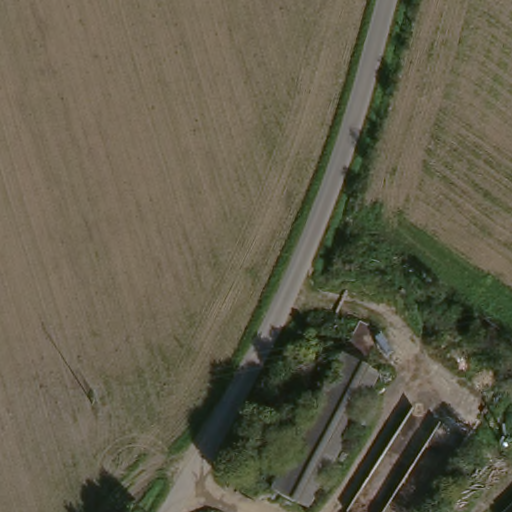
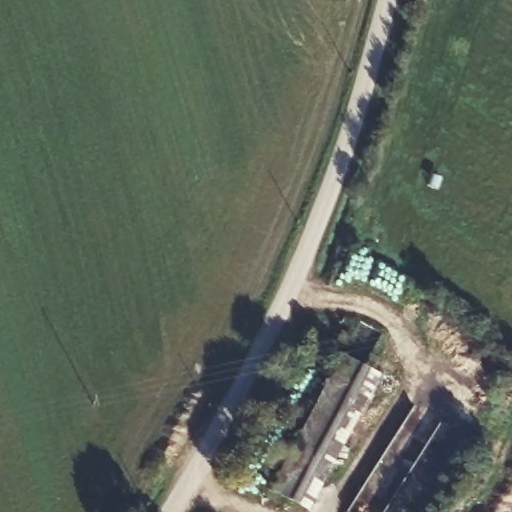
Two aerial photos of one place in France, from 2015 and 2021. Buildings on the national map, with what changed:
unchanged [(353,355),(389,374),(317,503),(281,480),(353,355)]

